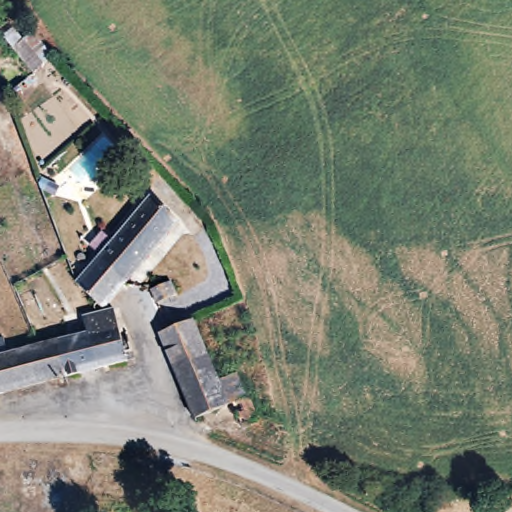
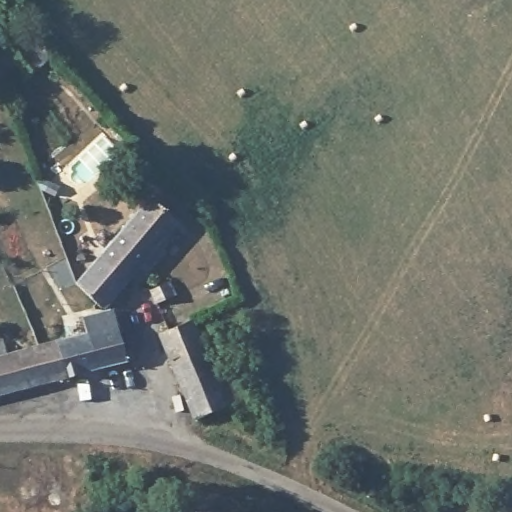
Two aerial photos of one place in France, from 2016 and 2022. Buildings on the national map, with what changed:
unchanged [(151,194),(177,222),(124,280),(109,297),(102,305),(74,282),(83,272),(98,255),(110,241),(151,194)]
unchanged [(192,322),(208,354),(172,367),(168,357),(159,335),(167,331),(157,306),(153,296),(156,295),(167,287),(171,282),(176,294),(171,298),(173,302),(184,324),(192,322)]
unchanged [(114,308),(119,327),(127,326),(136,354),(98,364),(88,328),(85,318),(85,315),(114,308)]
unchanged [(88,328),(98,364),(69,371),(59,336),(88,328)]
unchanged [(1,336),(2,339),(5,350),(59,336),(69,371),(0,389),(0,336),(1,336)]
unchanged [(208,354),(222,382),(234,378),(249,403),(261,432),(261,433),(240,432),(230,408),(195,422),(172,367),(208,354)]

